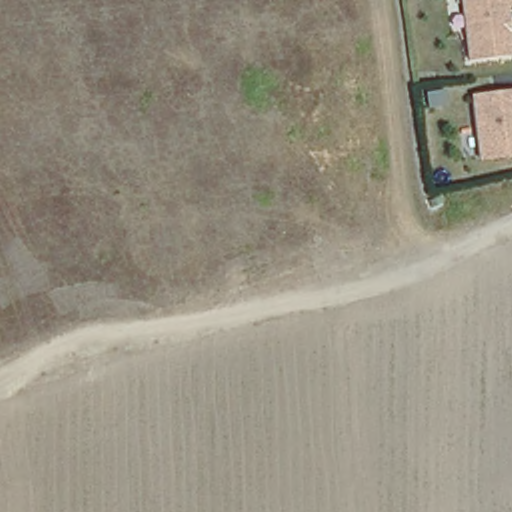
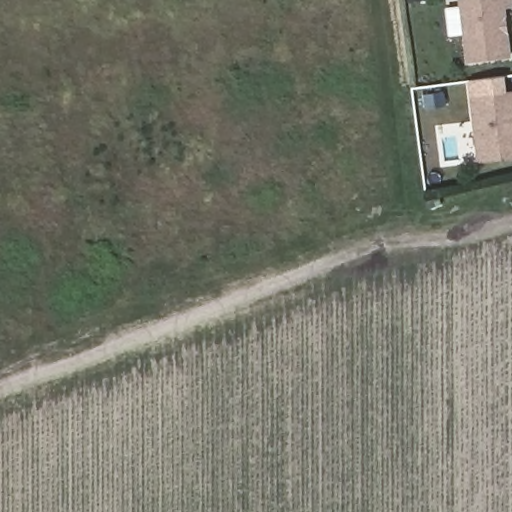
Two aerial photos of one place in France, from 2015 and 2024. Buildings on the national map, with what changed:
unchanged [(467,62),(461,0),(511,0),(511,7),(503,8),(508,57),(467,62)]
unchanged [(476,99),(512,95),(512,158),(483,161),(476,99)]

